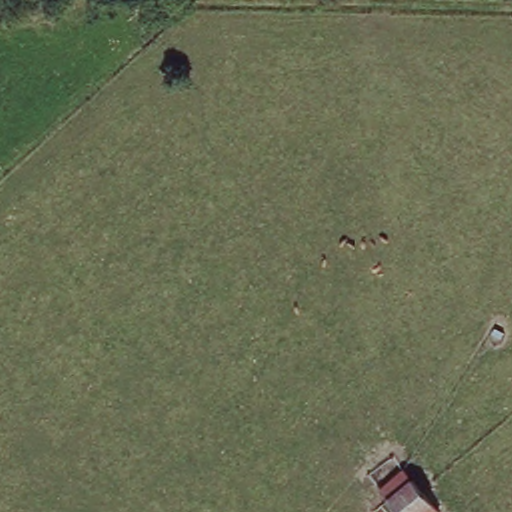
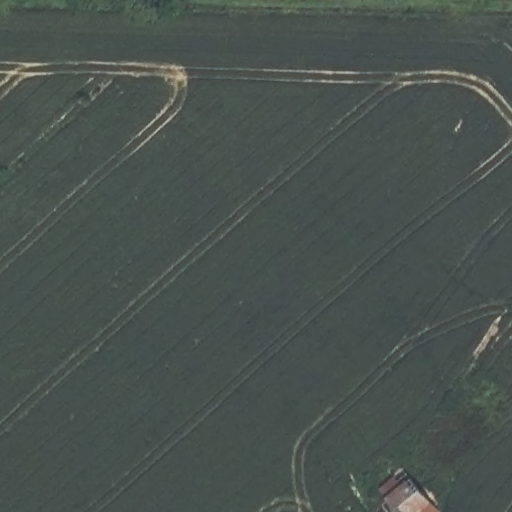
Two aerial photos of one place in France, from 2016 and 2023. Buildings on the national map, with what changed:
unchanged [(397,511),(380,487),(407,469),(424,493),(438,512),(398,512),(397,511)]

